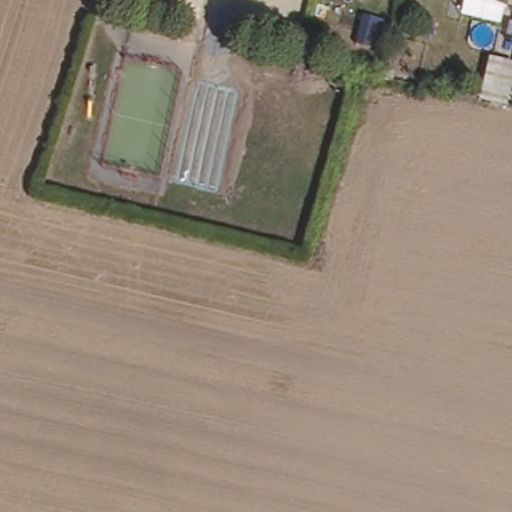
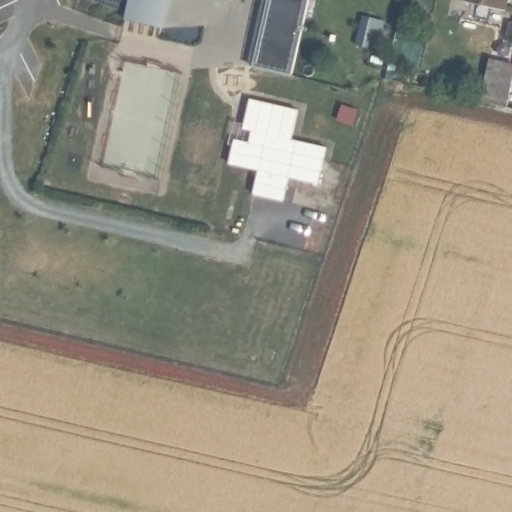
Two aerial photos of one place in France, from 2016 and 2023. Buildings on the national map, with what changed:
unchanged [(127,14),(131,0),(166,0),(162,21),(127,14)]
new [(255,62),(268,0),(307,0),(292,69),(255,62)]
unchanged [(473,0),(507,0),(506,7),(473,0)]
unchanged [(512,20),(512,38),(505,37),(508,19),(512,20)]
new [(490,55),(512,61),(512,78),(506,104),(479,97),(490,55)]
new [(230,145),(235,122),(245,124),(250,100),(297,110),(292,140),(327,147),(320,182),(290,177),(285,200),(255,194),(260,170),(231,164),(234,146),(230,145)]

